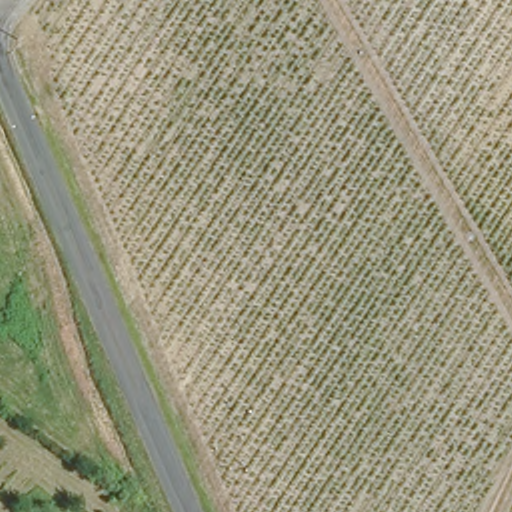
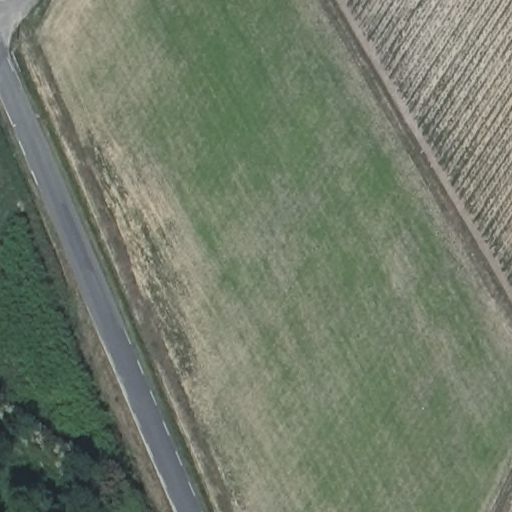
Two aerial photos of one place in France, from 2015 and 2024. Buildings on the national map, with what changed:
[]

